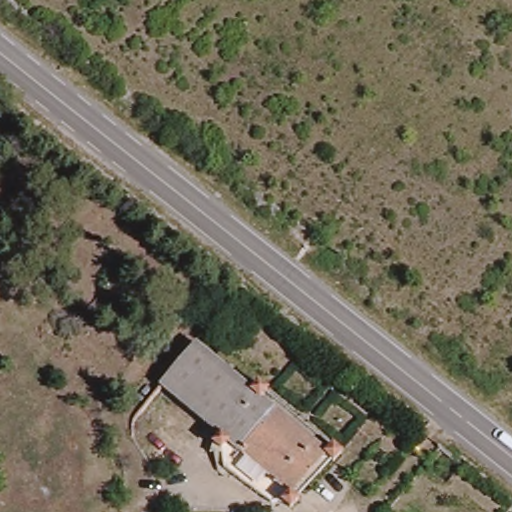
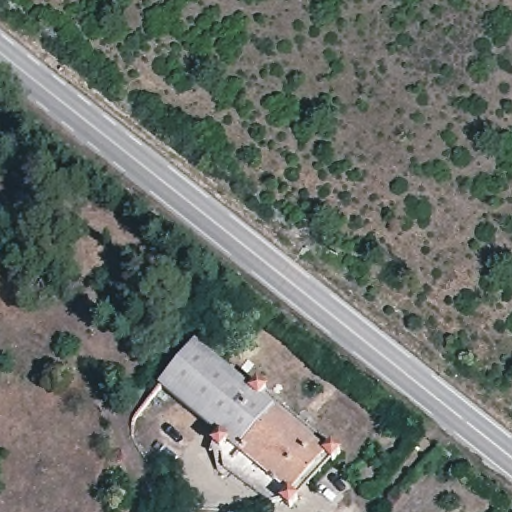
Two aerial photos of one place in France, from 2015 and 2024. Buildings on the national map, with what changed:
unchanged [(335,462),(328,455),(295,491),(302,498),(293,507),(285,499),(278,500),(224,463),(229,455),(212,442),(218,433),(208,424),(189,444),(155,420),(149,423),(138,414),(200,341),(253,387),(261,378),(273,388),(265,398),(326,450),(334,440),(346,450),(335,462)]

